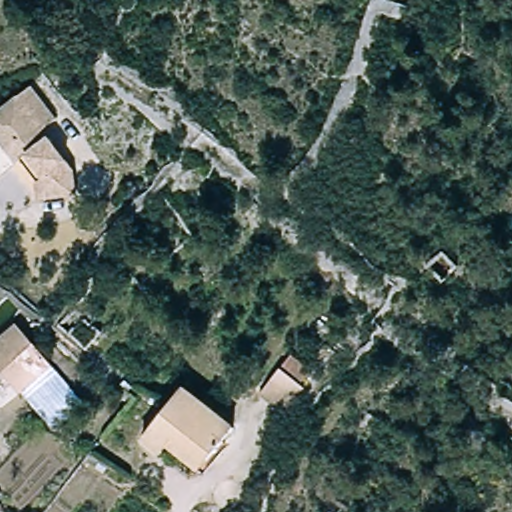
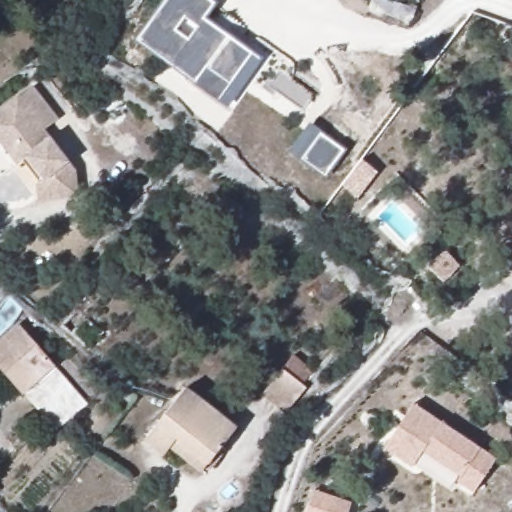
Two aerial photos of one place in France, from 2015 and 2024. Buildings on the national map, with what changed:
new [(135,37),(162,0),(210,0),(213,2),(204,17),(251,54),(228,85),(216,99),(193,81),(135,37)]
unchanged [(47,127),(78,166),(82,195),(40,199),(37,181),(46,175),(30,151),(20,159),(7,144),(0,134),(0,111),(32,85),(59,117),(47,127)]
new [(289,151),(308,123),(318,130),(341,149),(324,175),(300,159),(289,151)]
unchanged [(56,431),(0,367),(0,340),(19,325),(89,401),(56,431)]
unchanged [(293,355),(314,370),(303,385),(306,387),(287,411),(264,392),(293,355)]
unchanged [(174,440),(164,454),(142,437),(158,415),(180,384),(235,423),(213,455),(207,463),(174,440)]
new [(410,401),(420,407),(492,451),(472,486),(454,475),(457,470),(418,447),(408,464),(382,447),(398,421),(410,401)]
new [(349,512),(306,512),(315,486),(331,492),(353,500),(349,512)]

